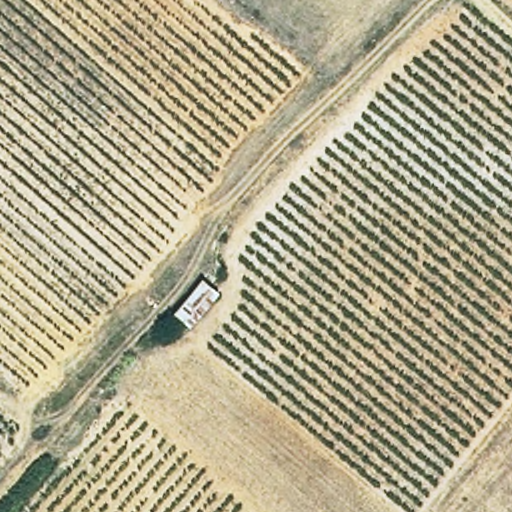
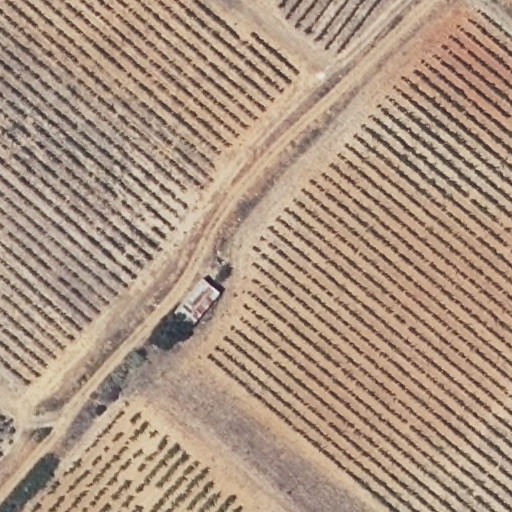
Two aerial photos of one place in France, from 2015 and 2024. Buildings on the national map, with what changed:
unchanged [(207,280),(216,298),(187,333),(171,317),(207,280)]

